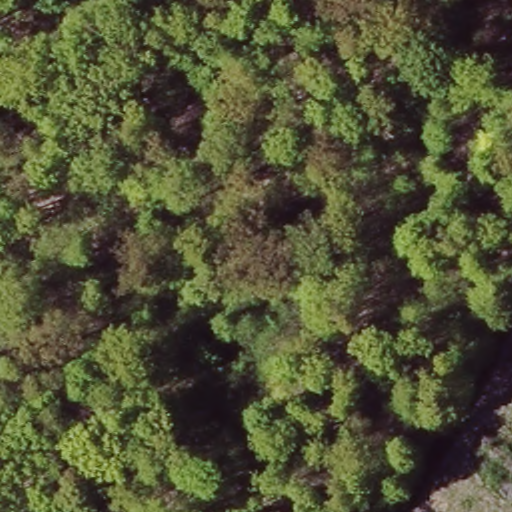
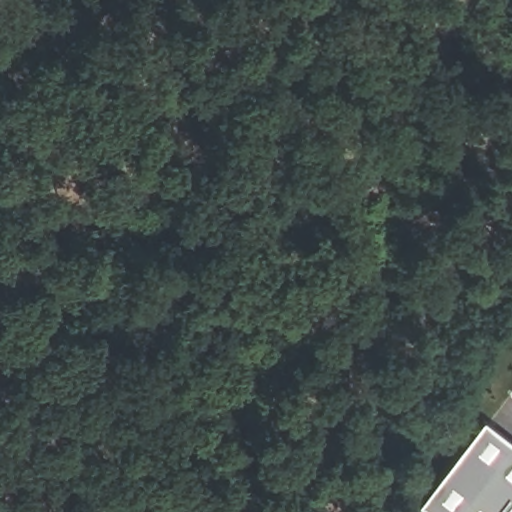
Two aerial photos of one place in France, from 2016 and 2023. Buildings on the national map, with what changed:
new [(484,419),(512,441),(512,512),(429,512),(419,504),(484,419)]

